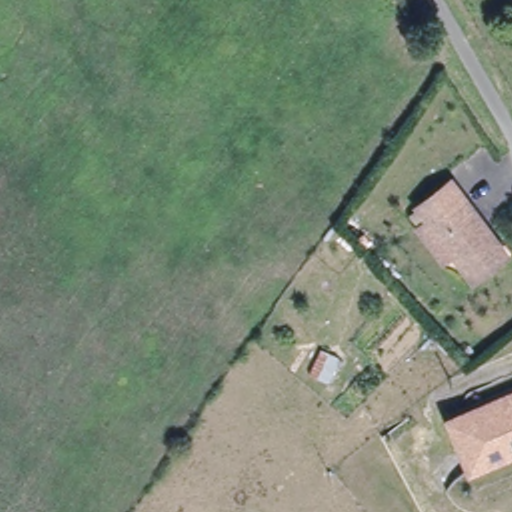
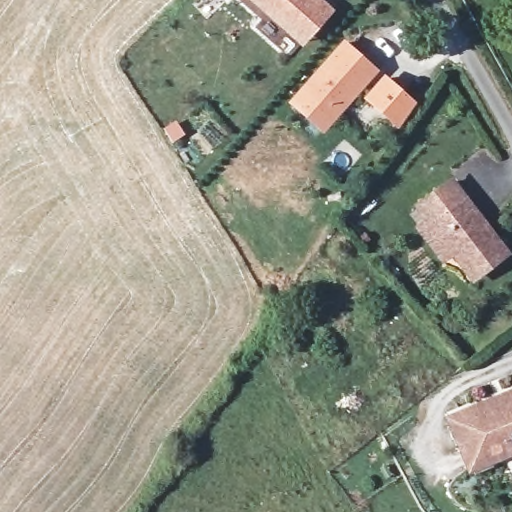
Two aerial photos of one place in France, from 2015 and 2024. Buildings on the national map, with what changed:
new [(250,0),(323,0),(335,10),(302,47),(250,0)]
new [(287,102),(343,39),(379,70),(323,134),(287,102)]
new [(364,97),(383,74),(416,102),(399,129),(364,97)]
unchanged [(419,231),(432,219),(420,206),(450,179),(511,249),(480,276),(461,254),(447,264),(419,231)]
unchanged [(459,417),(512,395),(512,453),(508,455),(482,466),(459,417)]

